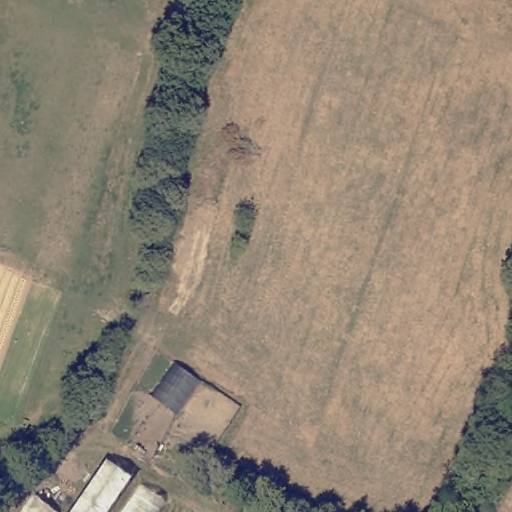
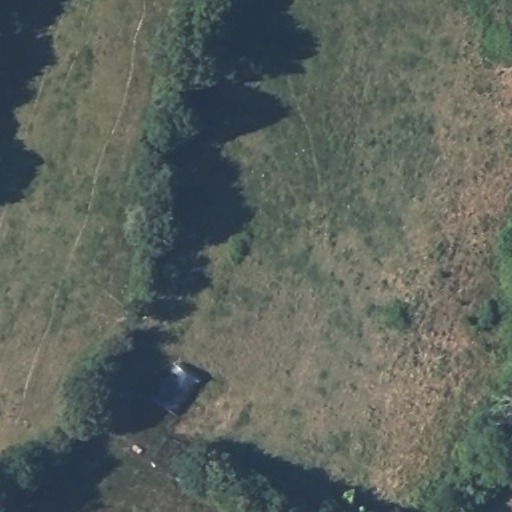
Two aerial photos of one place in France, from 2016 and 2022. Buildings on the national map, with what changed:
demolished [(191,512),(70,512),(109,455),(191,512)]
unchanged [(20,512),(33,496),(55,511),(54,512),(20,512)]

